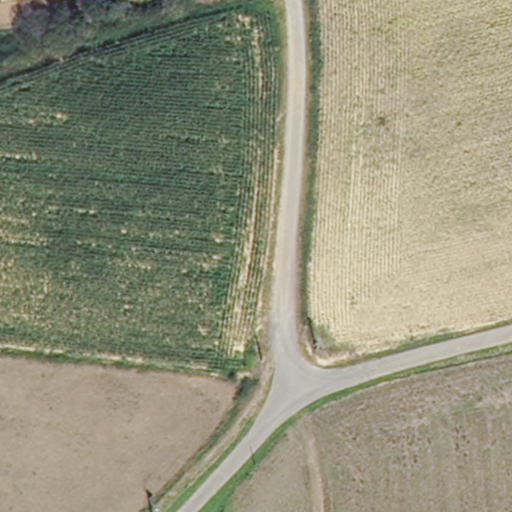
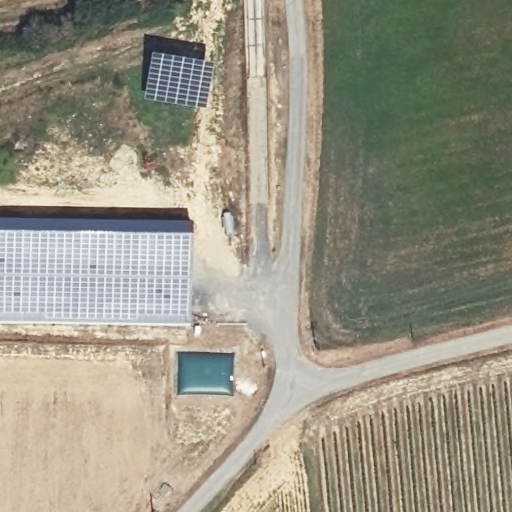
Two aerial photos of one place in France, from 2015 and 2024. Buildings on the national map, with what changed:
new [(151,52),(170,55),(169,66),(207,74),(204,111),(142,103),(151,52)]
new [(186,243),(184,339),(0,335),(0,238),(186,243)]

